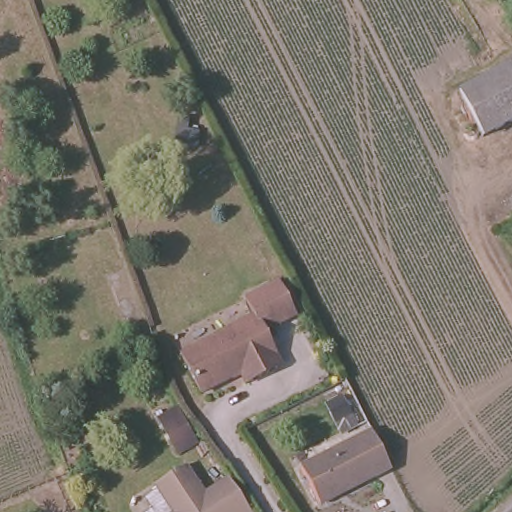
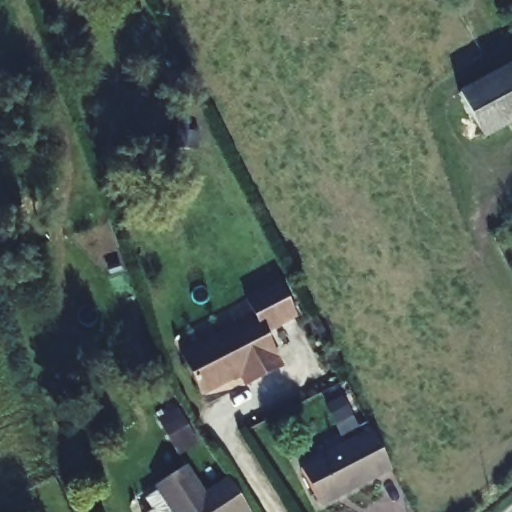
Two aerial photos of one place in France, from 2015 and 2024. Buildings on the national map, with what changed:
unchanged [(458,92),(488,75),(512,63),(512,119),(481,134),(458,92)]
unchanged [(273,281),(289,315),(262,329),(276,362),(237,381),(232,370),(194,387),(168,331),(273,281)]
unchanged [(318,503),(299,467),(366,430),(385,468),(318,503)]
unchanged [(150,506),(146,498),(159,491),(156,486),(184,468),(203,496),(214,488),(227,480),(246,512),(143,512),(143,510),(150,506)]

